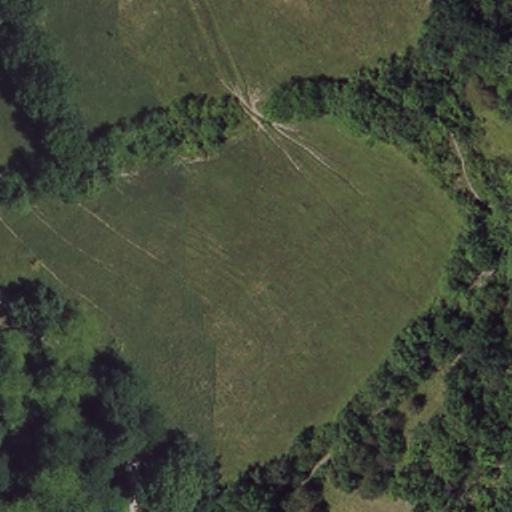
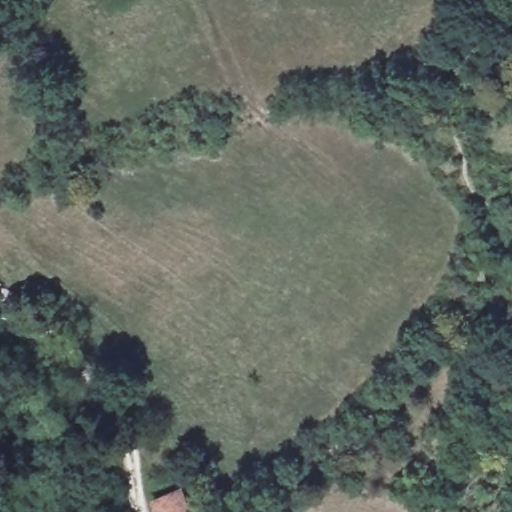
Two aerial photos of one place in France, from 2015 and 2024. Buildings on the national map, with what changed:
new [(191,512),(154,512),(149,501),(181,490),(191,512)]

